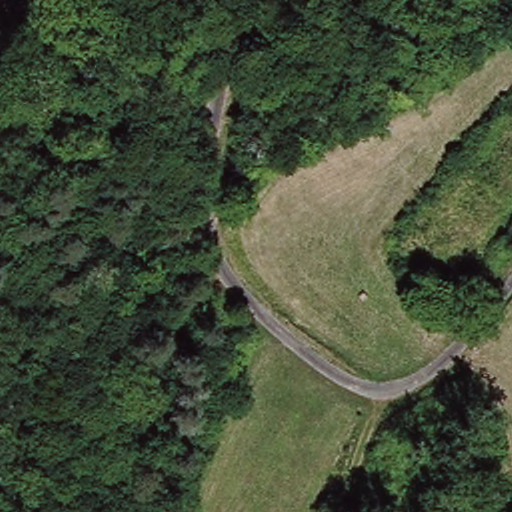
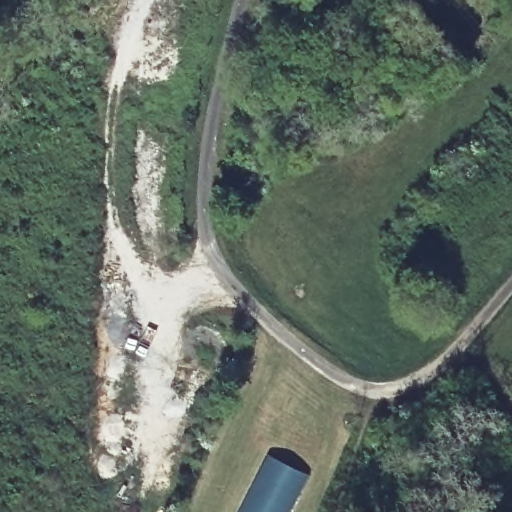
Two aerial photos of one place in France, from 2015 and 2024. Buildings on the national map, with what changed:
new [(309,475),(290,512),(237,512),(266,453),(309,475)]

